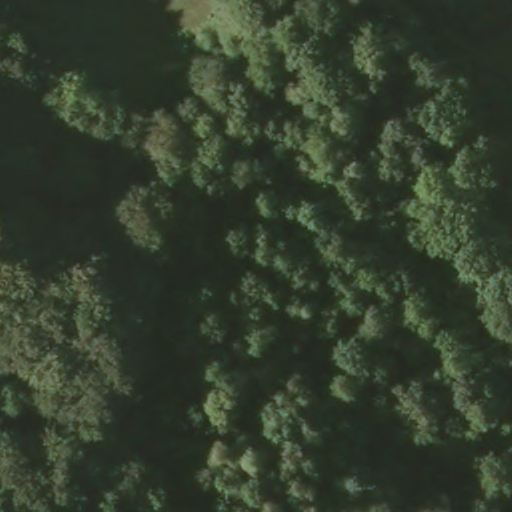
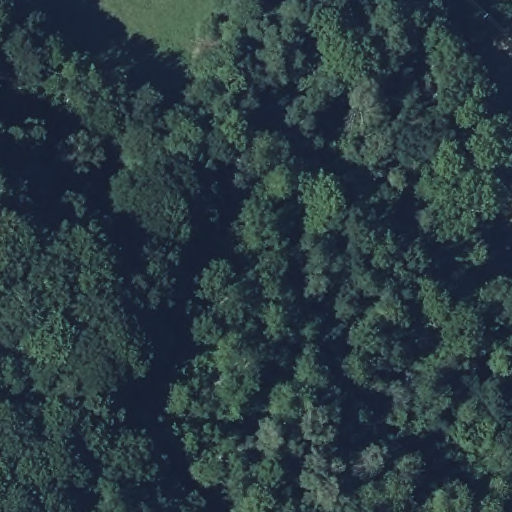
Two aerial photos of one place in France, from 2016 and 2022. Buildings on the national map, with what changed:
[]

